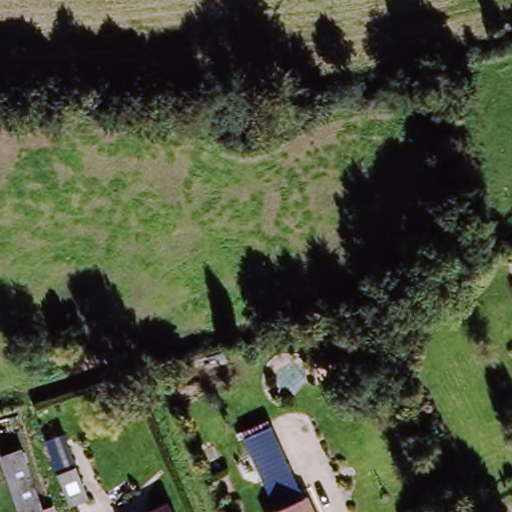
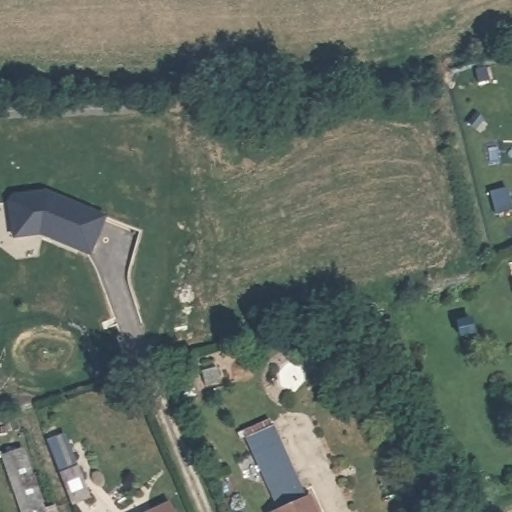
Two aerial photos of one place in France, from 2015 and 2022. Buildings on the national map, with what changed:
new [(42,190),(105,217),(91,255),(40,235),(12,239),(6,201),(10,195),(42,190)]
new [(507,191),(512,211),(496,215),(492,194),(507,191)]
unchanged [(276,429),(306,502),(311,500),(315,512),(278,512),(249,440),(276,429)]
unchanged [(86,499),(68,506),(45,442),(65,437),(86,499)]
unchanged [(21,449),(41,512),(18,512),(0,459),(0,457),(21,449)]
unchanged [(164,512),(174,508),(176,512),(164,512)]

